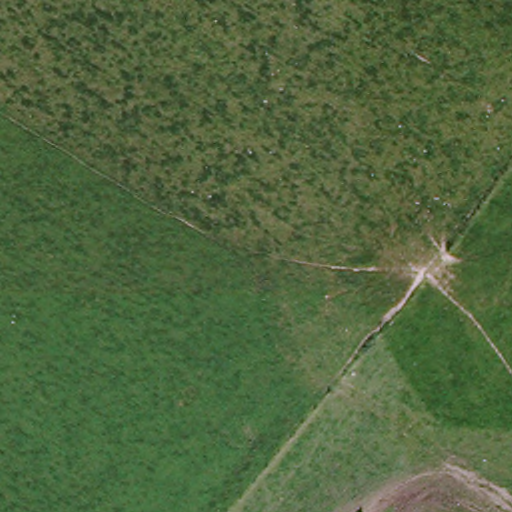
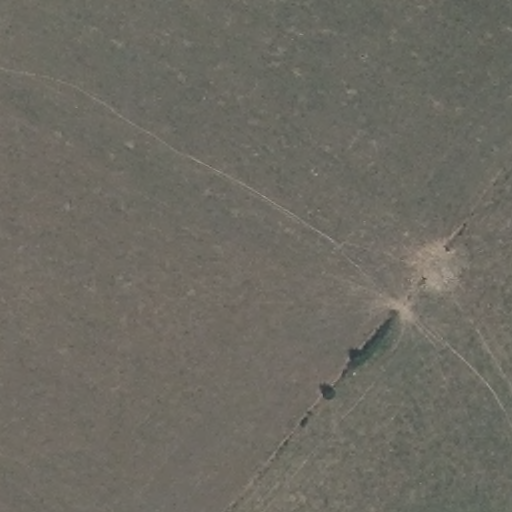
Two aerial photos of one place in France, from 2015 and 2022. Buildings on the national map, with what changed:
[]

